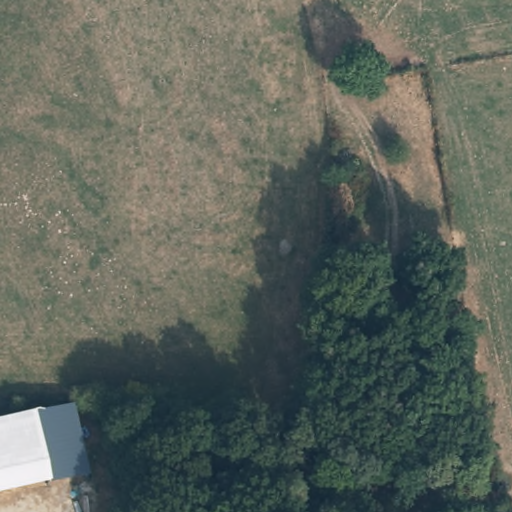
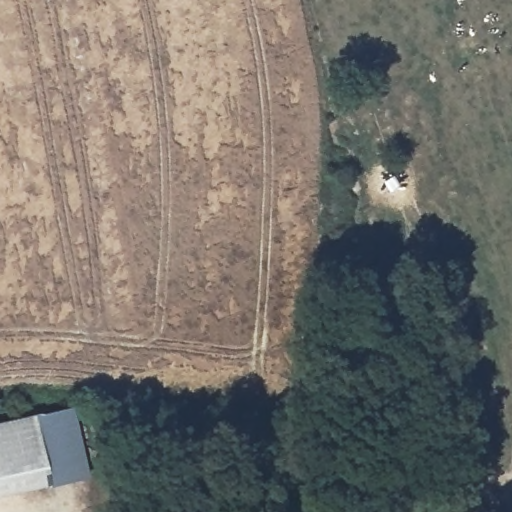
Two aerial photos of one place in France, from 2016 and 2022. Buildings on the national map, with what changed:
unchanged [(85,479),(0,497),(0,423),(72,407),(85,479)]

